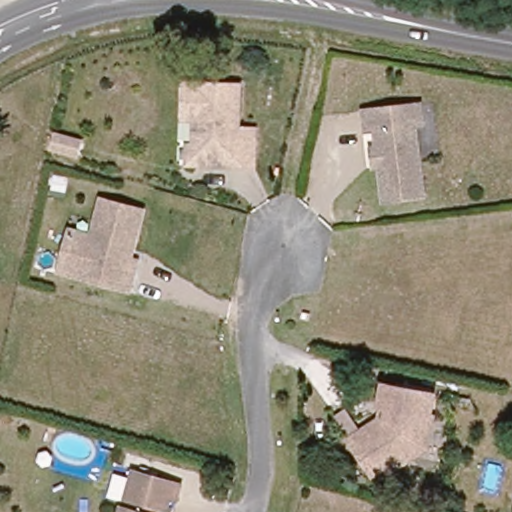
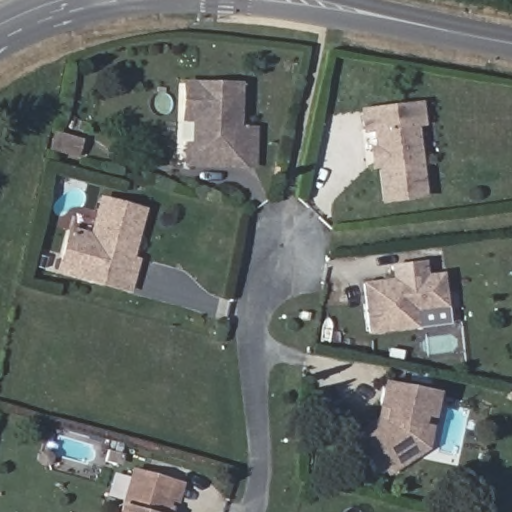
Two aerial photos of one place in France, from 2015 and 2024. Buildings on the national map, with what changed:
unchanged [(192,123),(182,122),(182,87),(237,87),(236,131),(253,131),(252,168),(235,168),(185,168),(185,149),(192,149),(192,123)]
unchanged [(377,203),(376,166),(384,163),(384,156),(376,151),(375,131),(366,133),(363,107),(405,106),(420,106),(421,124),(413,124),(417,197),(377,203)]
unchanged [(47,139),(74,146),(69,163),(43,156),(47,139)]
unchanged [(141,209),(132,248),(125,246),(123,255),(137,258),(130,288),(73,274),(59,271),(69,230),(81,233),(92,236),(101,199),(141,209)]
new [(444,272),(449,308),(417,310),(419,328),(368,334),(362,283),(444,272)]
unchanged [(382,474),(379,469),(364,476),(343,442),(379,420),(383,421),(385,414),(375,411),(380,390),(431,399),(426,420),(418,449),(382,474)]
unchanged [(163,512),(115,512),(127,468),(174,480),(170,496),(164,495),(162,504),(165,505),(163,512)]

